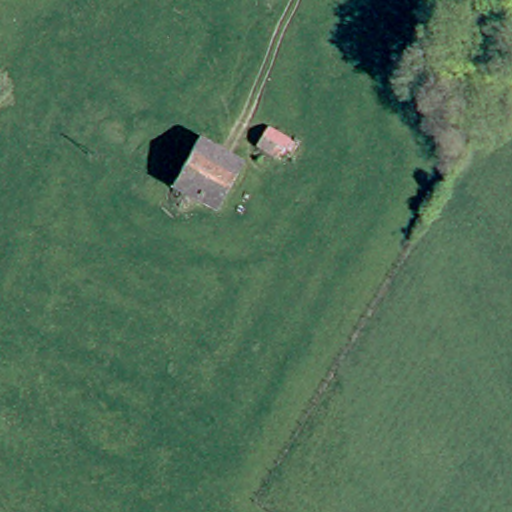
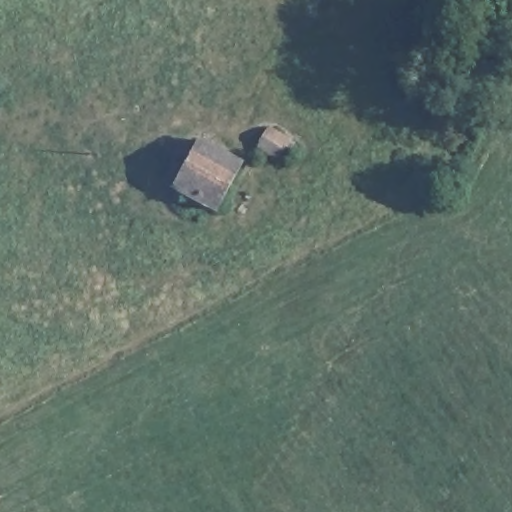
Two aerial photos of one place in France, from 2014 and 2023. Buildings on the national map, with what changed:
unchanged [(201,144),(242,163),(219,212),(178,195),(201,144)]

